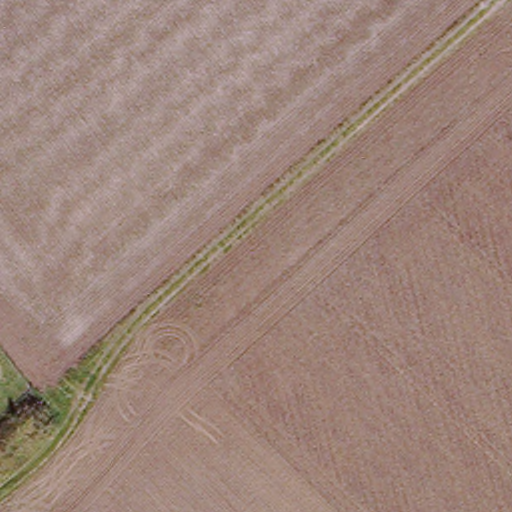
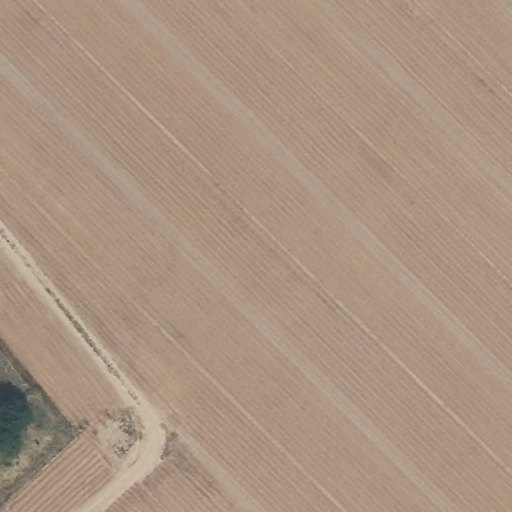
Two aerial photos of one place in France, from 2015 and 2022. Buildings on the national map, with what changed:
[]

